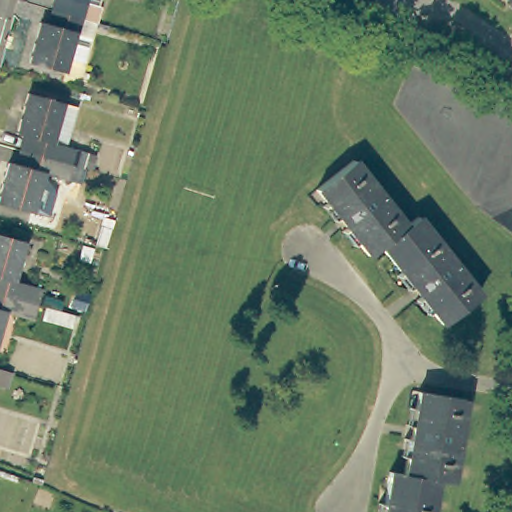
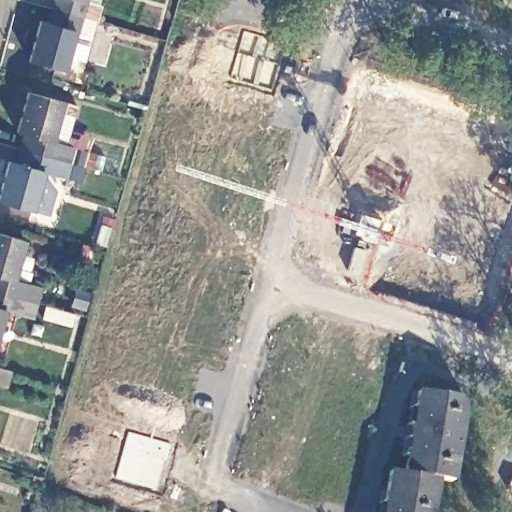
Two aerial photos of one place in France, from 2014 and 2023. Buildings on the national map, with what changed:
unchanged [(95,0),(99,2),(94,19),(90,18),(52,7),(54,0),(95,0)]
unchanged [(78,62),(62,57),(58,69),(27,60),(39,18),(48,21),(52,7),(90,18),(78,62)]
unchanged [(31,132),(25,130),(36,90),(83,105),(72,144),(80,146),(79,147),(88,150),(84,163),(27,147),(31,132)]
unchanged [(91,184),(45,170),(34,208),(1,197),(13,160),(23,161),(27,147),(84,163),(96,166),(91,184)]
demolished [(424,295),(415,283),(410,287),(399,273),(404,269),(383,244),(379,248),(373,253),(362,240),(357,243),(347,231),(352,227),(342,215),(337,219),(326,205),(331,201),(320,187),(356,159),(367,172),(409,225),(421,215),(483,291),(445,321),(435,308),(430,312),(419,298),(424,295)]
unchanged [(30,242),(20,279),(47,288),(42,306),(0,293),(0,234),(30,242)]
unchanged [(39,317),(12,310),(1,350),(0,350),(0,293),(42,306),(39,317)]
unchanged [(11,389),(0,386),(0,366),(17,371),(11,389)]
unchanged [(60,401),(29,393),(34,375),(65,384),(60,401)]
unchanged [(418,425),(412,424),(415,409),(420,409),(423,390),(469,397),(455,481),(439,479),(433,512),(380,512),(387,471),(409,474),(412,457),(407,456),(410,438),(415,439),(418,425)]

